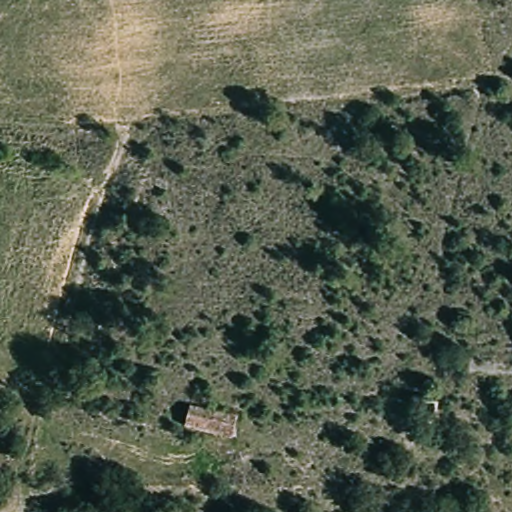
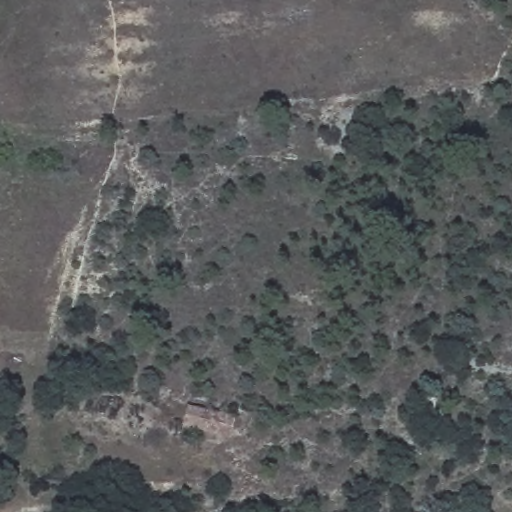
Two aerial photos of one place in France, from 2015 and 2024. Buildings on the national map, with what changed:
unchanged [(231,415),(227,435),(183,426),(187,406),(231,415)]

